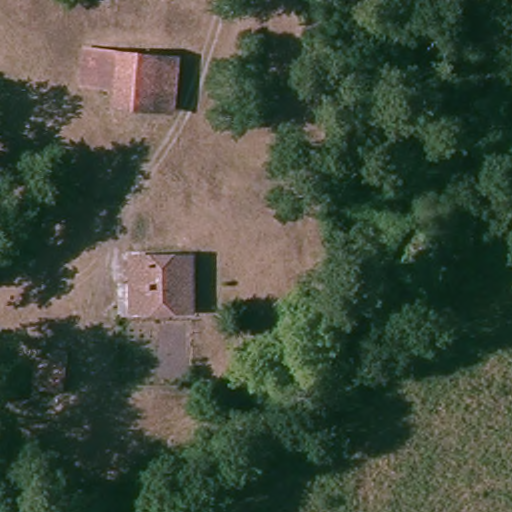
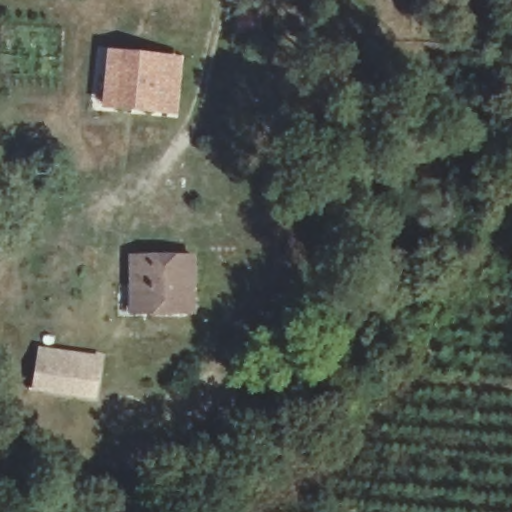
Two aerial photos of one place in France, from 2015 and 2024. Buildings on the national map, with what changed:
unchanged [(156,107),(113,106),(113,90),(94,90),(95,50),(157,52),(156,107)]
unchanged [(180,107),(156,107),(157,52),(182,52),(180,107)]
unchanged [(199,250),(200,319),(119,321),(119,301),(135,301),(133,251),(199,250)]
new [(31,390),(39,347),(103,357),(97,400),(31,390)]
demolished [(82,396),(79,420),(54,417),(56,392),(82,396)]

